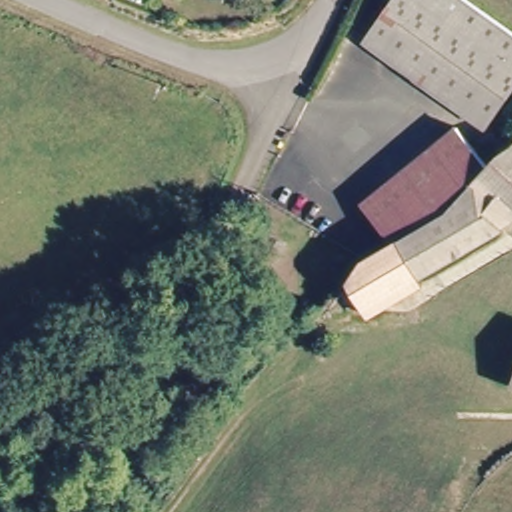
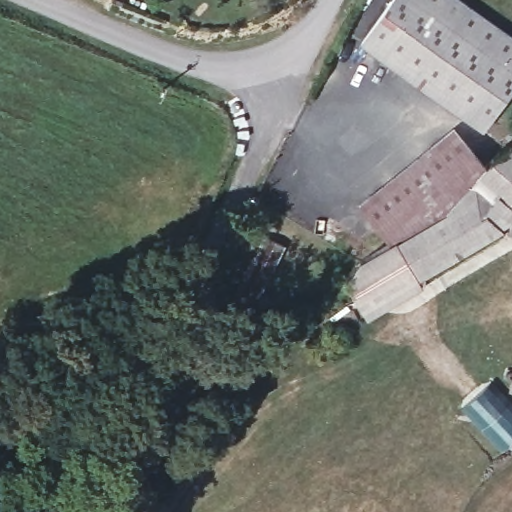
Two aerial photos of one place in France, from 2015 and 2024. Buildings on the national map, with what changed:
unchanged [(512,41),(512,101),(487,135),(361,50),(396,0),(452,0),(512,41)]
unchanged [(359,210),(456,134),(486,170),(392,251),(359,210)]
unchanged [(486,170),(512,149),(512,226),(506,232),(390,298),(368,263),(392,251),(486,170)]
unchanged [(255,300),(238,290),(262,247),(280,257),(255,300)]
unchanged [(207,366),(182,402),(169,392),(194,358),(207,366)]
new [(502,450),(462,408),(490,383),(512,408),(512,442),(502,450)]

